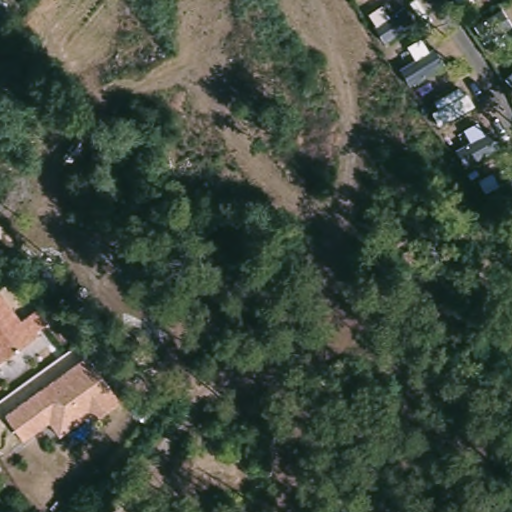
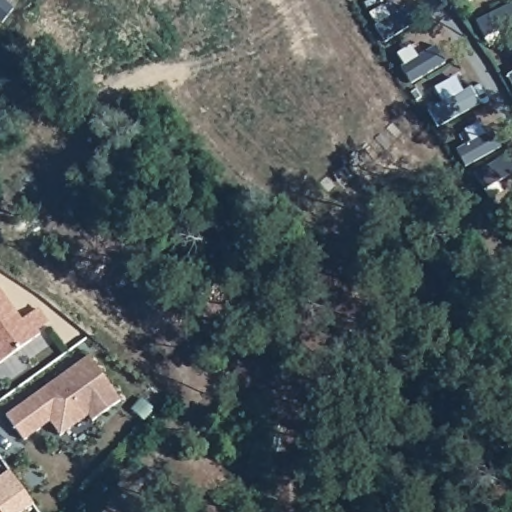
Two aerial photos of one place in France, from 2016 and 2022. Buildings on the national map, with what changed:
unchanged [(22,322),(42,307),(53,324),(0,363),(0,289),(22,322)]
unchanged [(89,354),(122,399),(92,423),(89,418),(61,438),(51,423),(23,442),(4,415),(89,354)]
new [(8,473),(31,506),(23,512),(0,512),(0,478),(8,473)]

